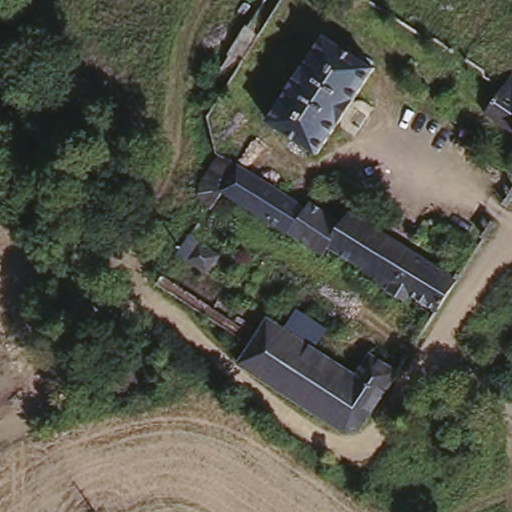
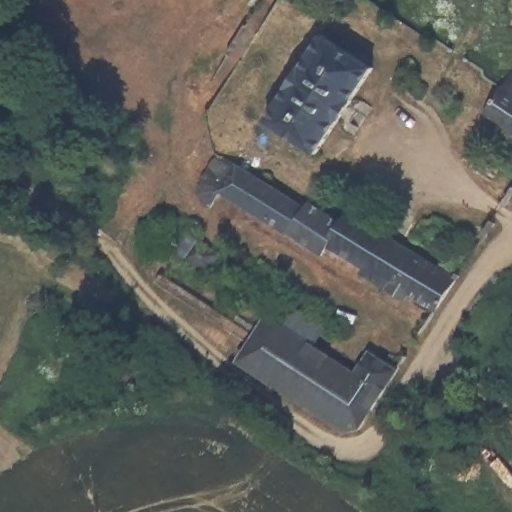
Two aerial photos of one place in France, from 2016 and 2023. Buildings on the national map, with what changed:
unchanged [(362,0),(374,0),(385,7),(376,18),(358,6),(362,0)]
unchanged [(381,60),(324,150),(267,114),(322,25),(381,60)]
unchanged [(507,80),(512,72),(512,127),(487,113),(507,80)]
unchanged [(432,294),(425,305),(401,292),(406,284),(310,227),(302,237),(230,188),(221,200),(211,189),(236,151),(314,203),(318,196),(361,220),(366,212),(467,276),(450,304),(432,294)]
unchanged [(235,277),(222,295),(191,277),(204,258),(235,277)]
unchanged [(302,300),(292,317),(273,305),(283,289),(302,300)]
unchanged [(277,318),(369,376),(385,351),(405,364),(363,427),(255,354),(258,339),(277,318)]

